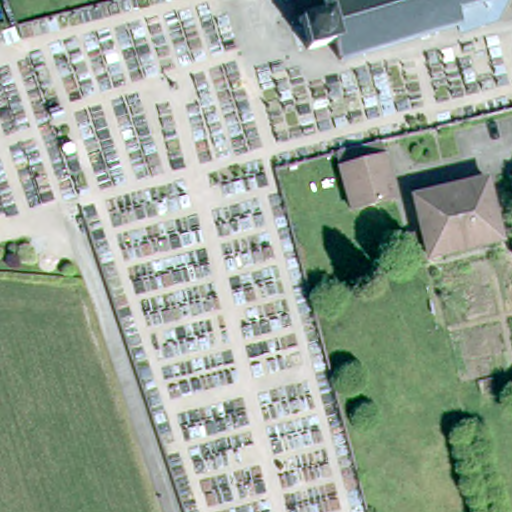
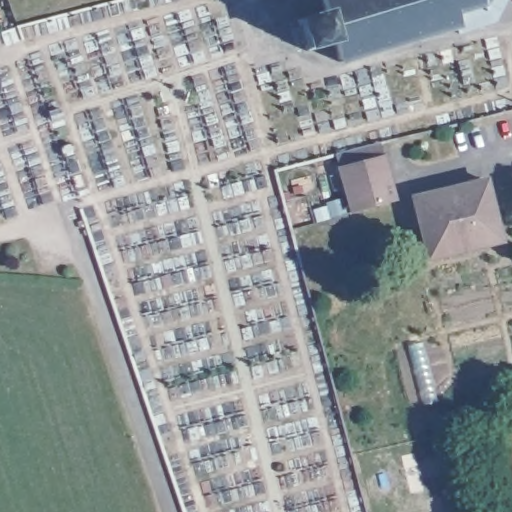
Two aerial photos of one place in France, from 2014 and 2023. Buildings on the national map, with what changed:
unchanged [(462,34),(460,28),(342,62),(336,43),(310,51),(300,19),(327,11),(324,0),(510,0),(499,21),(462,34)]
unchanged [(349,215),(334,160),(377,150),(392,205),(349,215)]
unchanged [(488,180),(502,241),(412,264),(405,237),(422,233),(414,197),(488,180)]

